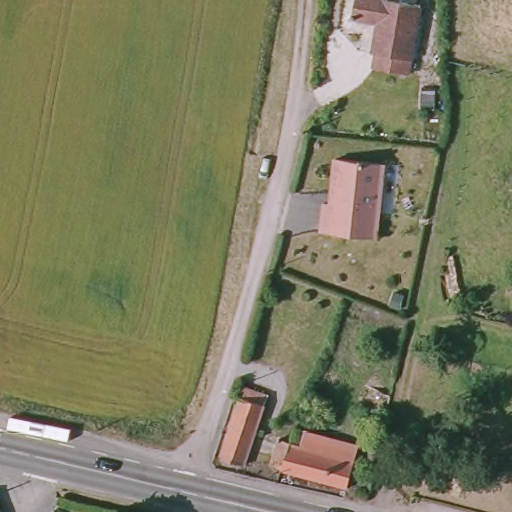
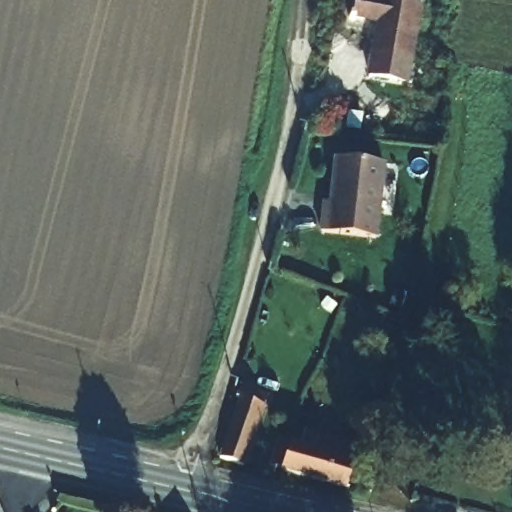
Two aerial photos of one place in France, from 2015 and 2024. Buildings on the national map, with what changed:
unchanged [(422,10),(412,78),(380,74),(382,63),(377,61),(385,27),(356,22),(360,2),(422,10)]
unchanged [(382,168),(374,242),(323,237),(325,211),(332,207),(337,163),(382,168)]
unchanged [(245,405),(240,402),(244,388),(270,399),(243,467),(223,461),(245,405)]
unchanged [(362,411),(372,395),(393,406),(388,427),(362,411)]
unchanged [(343,489),(279,471),(263,466),(272,441),(287,446),(293,429),(358,447),(343,489)]

